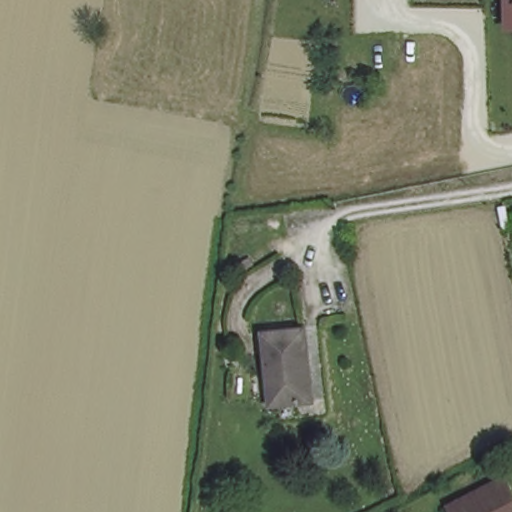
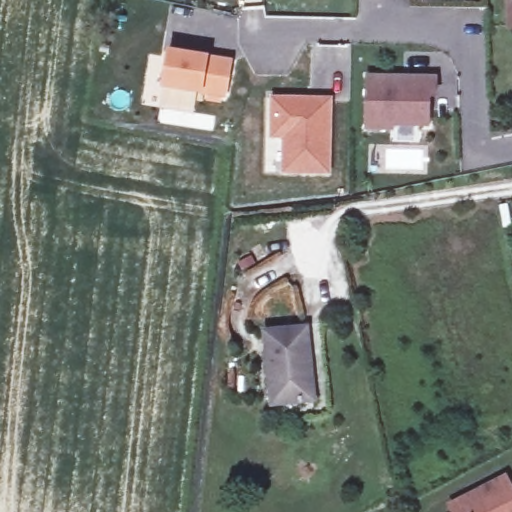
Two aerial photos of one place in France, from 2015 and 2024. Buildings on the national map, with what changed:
unchanged [(504,25),(504,0),(512,0),(512,25),(504,25)]
new [(228,64),(222,99),(160,88),(165,53),(228,64)]
new [(368,77),(435,78),(435,96),(428,95),(428,125),(392,124),(392,129),(367,128),(368,77)]
new [(270,95),(333,96),(332,175),(280,173),(281,140),(268,139),(270,95)]
unchanged [(273,405),(265,333),(307,328),(314,400),(273,405)]
unchanged [(506,472),(512,484),(512,512),(457,512),(451,501),(506,472)]

